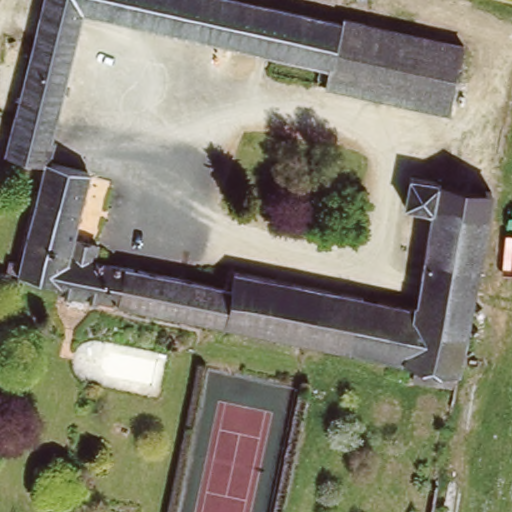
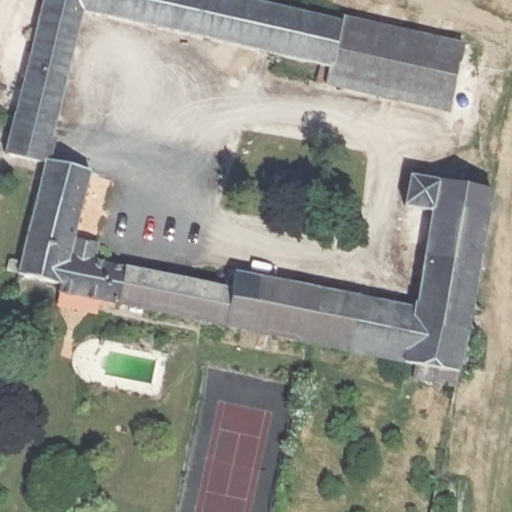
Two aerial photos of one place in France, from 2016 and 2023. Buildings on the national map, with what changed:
unchanged [(324,89),(327,69),(84,13),(50,150),(36,147),(34,162),(7,153),(12,139),(6,139),(37,0),(248,0),(342,22),(345,11),(473,40),(465,60),(447,114),(324,89)]
unchanged [(490,196),(460,375),(404,371),(405,358),(52,292),(55,282),(16,275),(46,158),(91,170),(69,261),(75,263),(82,238),(100,242),(97,265),(228,292),(235,275),(409,307),(428,212),(405,207),(410,177),(437,182),(490,196)]

